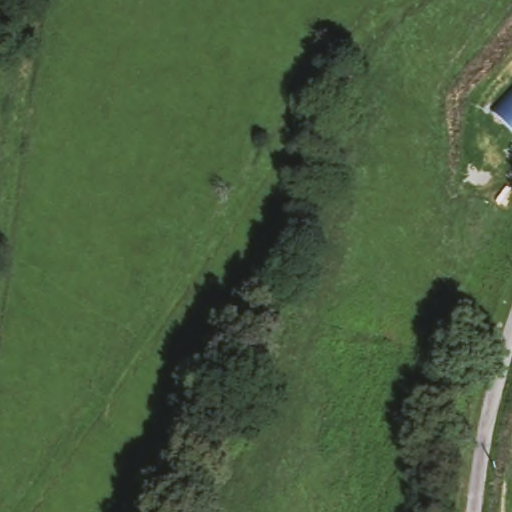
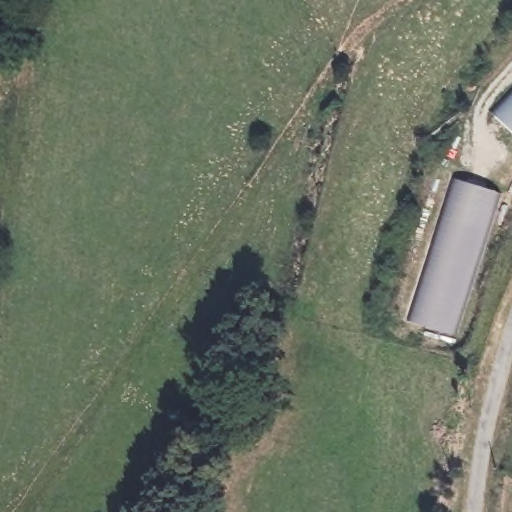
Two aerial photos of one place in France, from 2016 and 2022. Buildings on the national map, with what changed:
unchanged [(494,112),(512,93),(512,129),(494,112)]
new [(455,179),(501,194),(455,338),(410,323),(455,179)]

